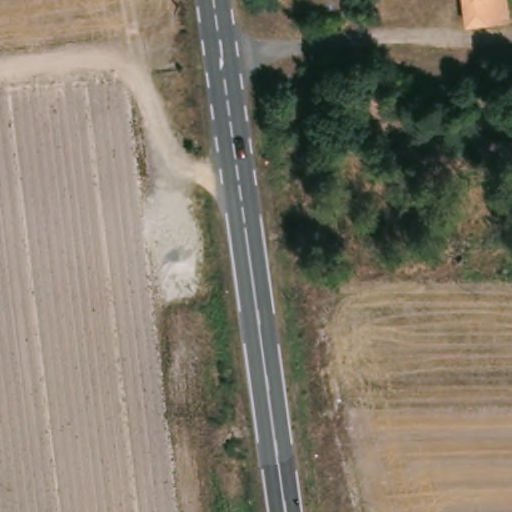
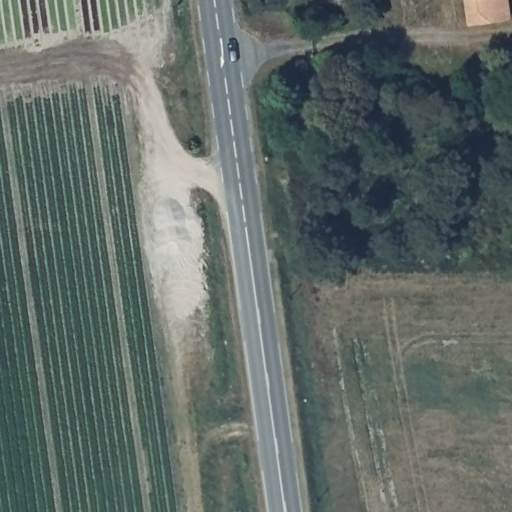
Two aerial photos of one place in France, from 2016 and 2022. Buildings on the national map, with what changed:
unchanged [(469,23),(466,0),(505,0),(508,16),(469,23)]

